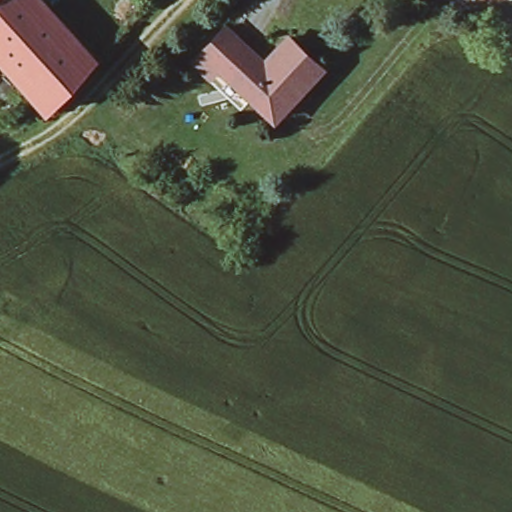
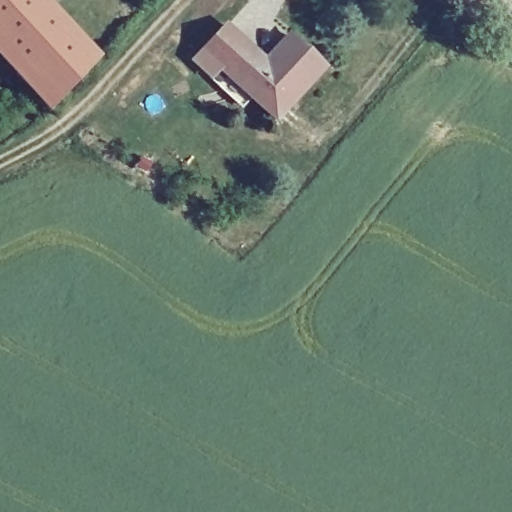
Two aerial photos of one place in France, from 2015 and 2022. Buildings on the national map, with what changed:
unchanged [(48,116),(0,61),(0,0),(40,0),(97,65),(48,116)]
unchanged [(210,71),(194,55),(215,32),(224,23),(262,58),(287,33),(320,64),(274,113),(249,91),(242,99),(210,71)]

